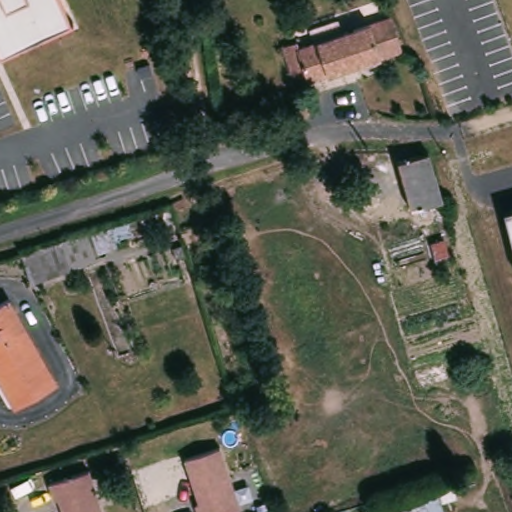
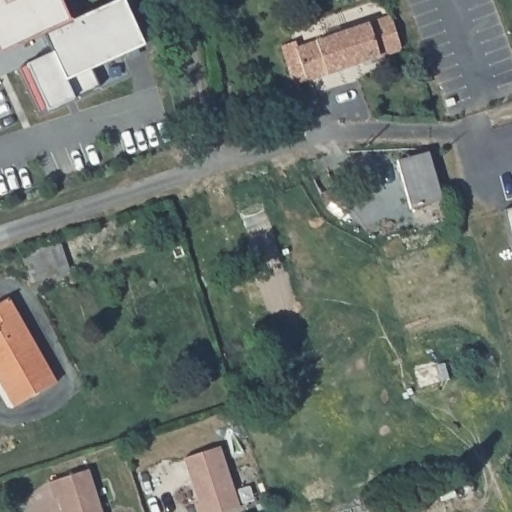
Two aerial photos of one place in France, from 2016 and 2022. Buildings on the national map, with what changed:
unchanged [(71,20),(0,52),(0,0),(61,0),(71,20)]
new [(119,0),(124,0),(145,46),(91,69),(96,85),(73,96),(47,109),(27,64),(54,51),(46,32),(71,20),(119,0)]
unchanged [(302,47),(300,41),(297,34),(366,10),(371,24),(302,47)]
unchanged [(395,16),(405,48),(298,84),(286,46),(300,41),(302,47),(371,24),(395,16)]
unchanged [(440,200),(409,208),(396,160),(427,152),(440,200)]
unchanged [(512,247),(502,211),(512,208),(512,247)]
unchanged [(115,222),(122,249),(93,257),(85,230),(115,222)]
unchanged [(30,281),(19,252),(57,239),(81,232),(88,254),(65,262),(67,268),(30,281)]
unchanged [(182,255),(174,258),(171,248),(179,244),(182,255)]
unchanged [(60,383),(19,406),(0,374),(0,304),(11,298),(60,383)]
unchanged [(221,512),(204,512),(201,500),(205,499),(190,455),(226,443),(246,504),(221,512)]
unchanged [(109,512),(69,512),(64,494),(60,495),(54,479),(94,466),(109,512)]
unchanged [(441,512),(388,512),(386,503),(433,487),(441,512)]

